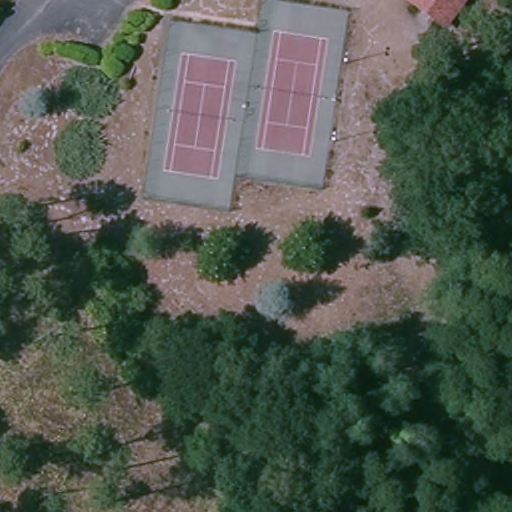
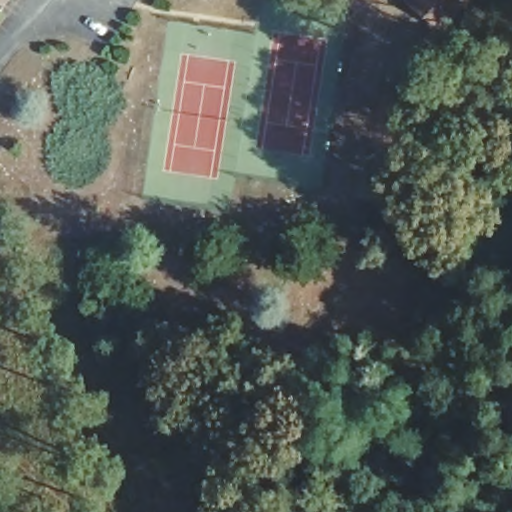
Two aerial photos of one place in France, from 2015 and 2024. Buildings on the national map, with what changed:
unchanged [(465,0),(446,26),(410,0),(465,0)]

